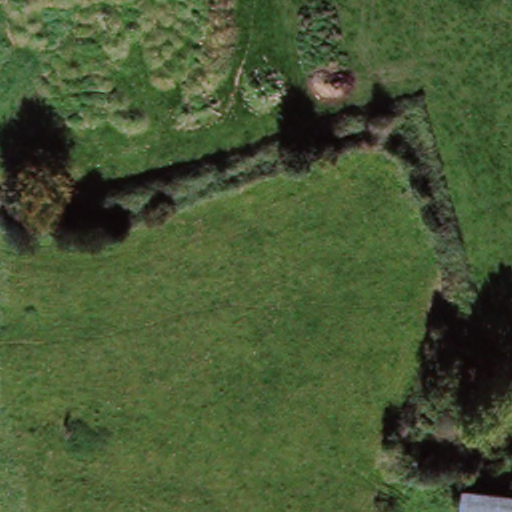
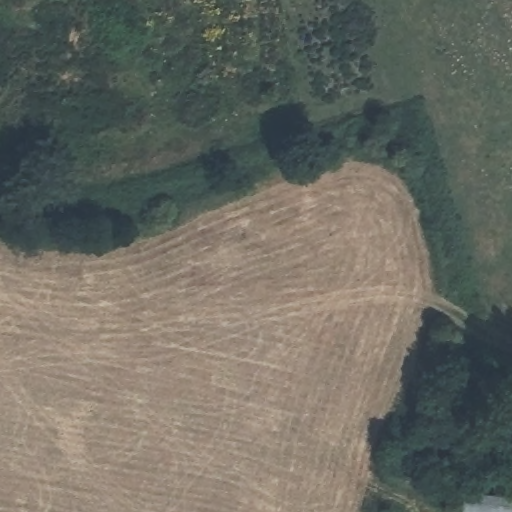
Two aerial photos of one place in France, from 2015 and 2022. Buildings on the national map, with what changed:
unchanged [(512,507),(512,512),(467,512),(469,500),(512,507)]

